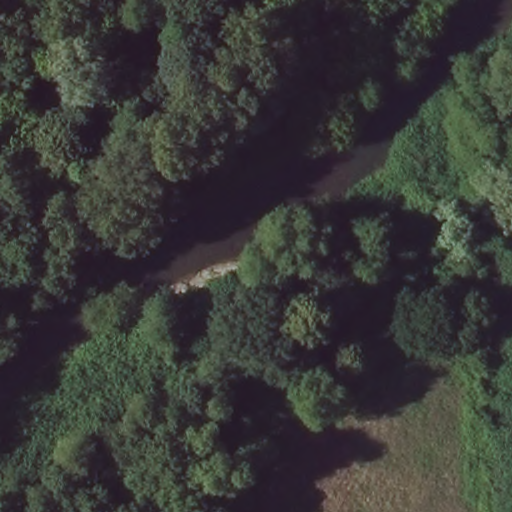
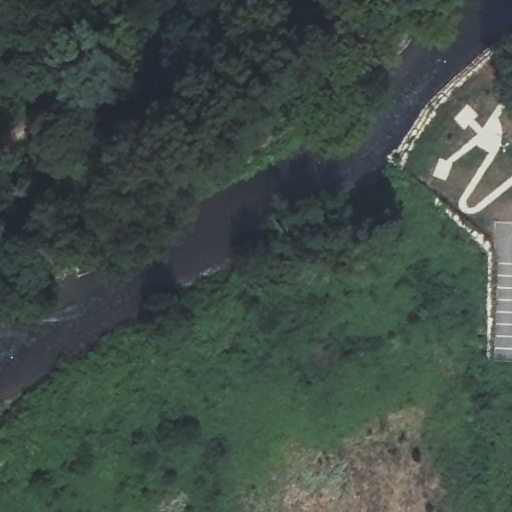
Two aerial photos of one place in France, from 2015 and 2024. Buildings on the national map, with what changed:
[]

